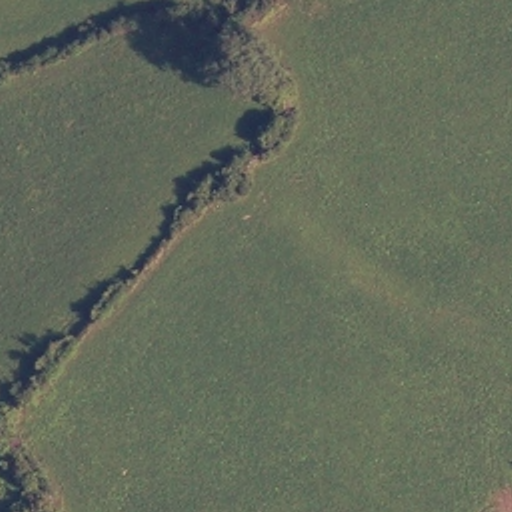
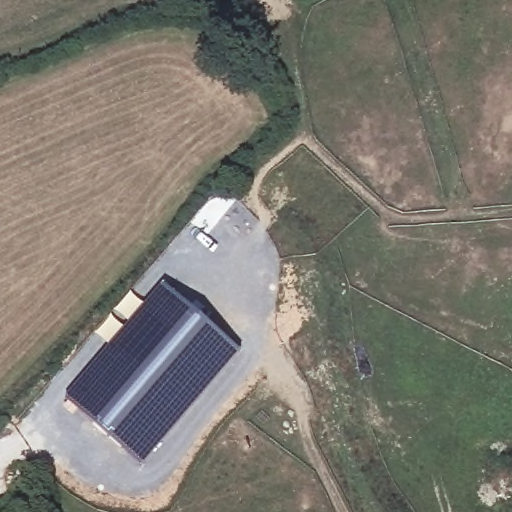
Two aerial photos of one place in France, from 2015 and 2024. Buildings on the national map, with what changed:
new [(108,343),(96,333),(131,292),(144,305),(163,282),(241,349),(142,465),(64,397),(108,343)]

